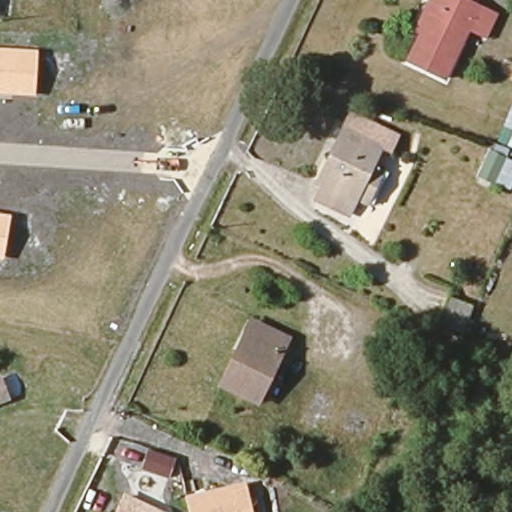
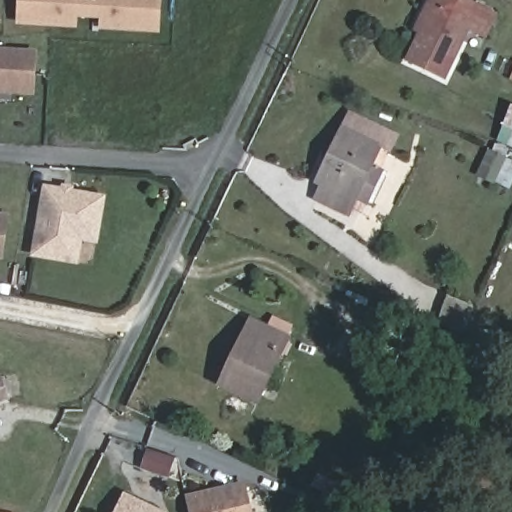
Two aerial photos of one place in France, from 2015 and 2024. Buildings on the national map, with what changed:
new [(21,0),(90,0),(90,15),(76,15),(75,25),(20,20),(21,0)]
new [(90,0),(161,0),(159,29),(102,25),(103,15),(90,15),(90,0)]
unchanged [(401,62),(434,0),(450,0),(475,11),(440,80),(401,62)]
unchanged [(35,95),(0,94),(0,47),(37,50),(35,95)]
new [(512,107),(512,146),(499,140),(512,107)]
unchanged [(347,127),(392,151),(382,168),(375,165),(361,191),(328,182),(321,180),(347,127)]
unchanged [(361,191),(342,226),(312,210),(328,182),(361,191)]
new [(107,195),(100,244),(84,242),(80,265),(32,257),(44,185),(61,187),(62,185),(75,186),(75,190),(107,195)]
unchanged [(4,260),(0,259),(0,213),(11,215),(4,260)]
unchanged [(448,300),(473,309),(461,336),(436,327),(448,300)]
unchanged [(254,402),(220,385),(241,339),(250,322),(260,327),(285,340),(254,402)]
unchanged [(0,401),(0,398),(1,401),(0,401)]
unchanged [(169,479),(140,470),(147,449),(175,458),(169,479)]
demolished [(125,508),(112,502),(130,463),(145,470),(125,508)]
unchanged [(245,480),(252,512),(189,512),(185,495),(245,480)]
new [(114,512),(124,492),(165,512),(114,512)]

